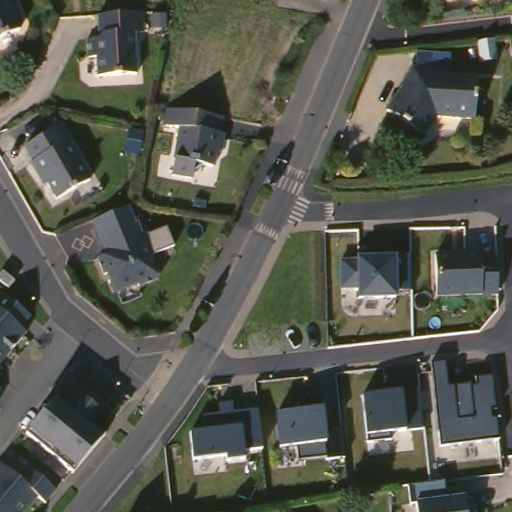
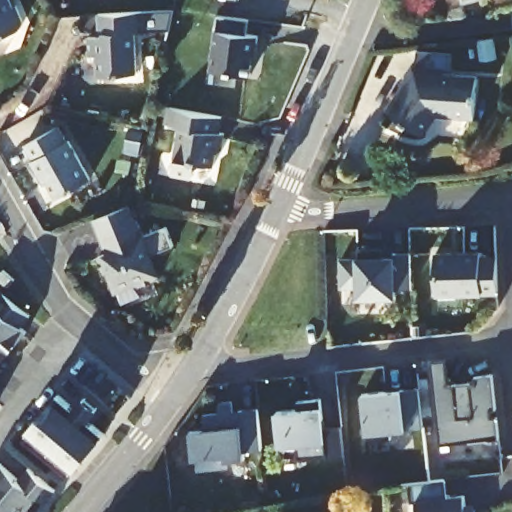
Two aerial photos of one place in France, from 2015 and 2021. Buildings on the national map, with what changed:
unchanged [(29,1),(36,17),(33,25),(0,38),(0,0),(25,0),(26,2),(29,1)]
unchanged [(470,0),(475,0),(471,2),(470,0)]
unchanged [(158,27),(149,28),(151,70),(111,71),(111,51),(102,52),(101,33),(114,32),(113,10),(116,10),(156,8),(158,27)]
new [(248,37),(258,38),(256,59),(252,57),(251,76),(211,71),(216,31),(218,32),(218,17),(249,21),(248,37)]
unchanged [(494,40),(497,59),(481,61),(479,41),(494,40)]
unchanged [(413,86),(411,85),(422,67),(455,70),(455,74),(487,77),(484,117),(462,117),(462,112),(444,111),(429,132),(396,111),(413,86)]
unchanged [(177,104),(231,114),(228,129),(233,130),(230,147),(224,151),(222,162),(203,159),(201,174),(181,170),(190,124),(174,121),(177,104)]
unchanged [(65,124),(74,139),(76,138),(98,177),(65,196),(51,172),(48,174),(39,159),(41,157),(33,142),(65,124)]
unchanged [(128,152),(131,135),(145,138),(141,156),(128,152)]
unchanged [(153,233),(160,252),(156,254),(164,277),(145,284),(143,279),(123,287),(116,270),(111,271),(105,255),(114,251),(107,234),(145,219),(151,234),(153,233)]
unchanged [(499,292),(485,293),(438,298),(436,257),(484,254),(484,257),(498,255),(499,292)]
unchanged [(396,289),(398,297),(359,298),(358,288),(341,290),(338,260),(359,257),(397,255),(411,255),(414,290),(396,289)]
unchanged [(13,266),(25,276),(19,283),(7,273),(13,266)]
unchanged [(37,310),(28,321),(34,326),(26,335),(0,349),(0,297),(8,286),(37,310)]
unchanged [(0,368),(0,349),(26,335),(0,368)]
unchanged [(442,447),(433,365),(446,363),(450,390),(480,386),(480,379),(493,377),(501,437),(442,447)]
unchanged [(95,406),(105,393),(118,404),(108,416),(121,427),(124,429),(93,468),(92,467),(91,467),(43,429),(74,390),(95,406)]
unchanged [(406,432),(392,433),(393,441),(368,442),(367,435),(362,397),(405,392),(418,391),(424,429),(406,432)]
unchanged [(0,413),(0,394),(9,402),(0,413)]
unchanged [(346,457),(326,457),(297,461),(295,447),(281,449),(277,410),(324,404),(326,418),(343,417),(346,457)]
unchanged [(262,450),(245,452),(245,458),(226,461),(226,455),(193,459),(190,432),(202,431),(201,417),(257,412),(262,450)]
unchanged [(23,452),(51,475),(41,487),(46,491),(29,512),(0,512),(0,468),(7,460),(13,465),(23,452)]
unchanged [(417,505),(410,506),(408,487),(445,483),(446,497),(468,495),(470,512),(417,512),(417,505)]

